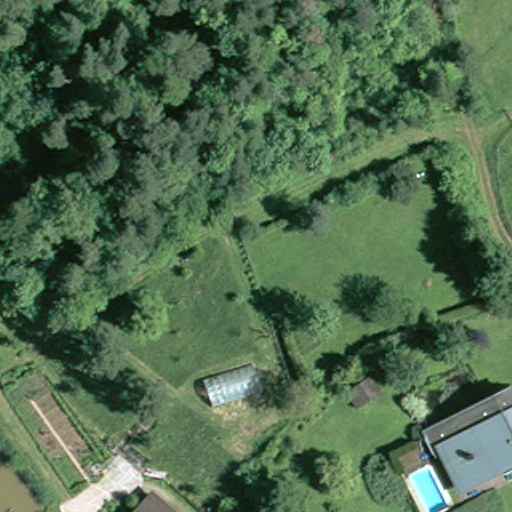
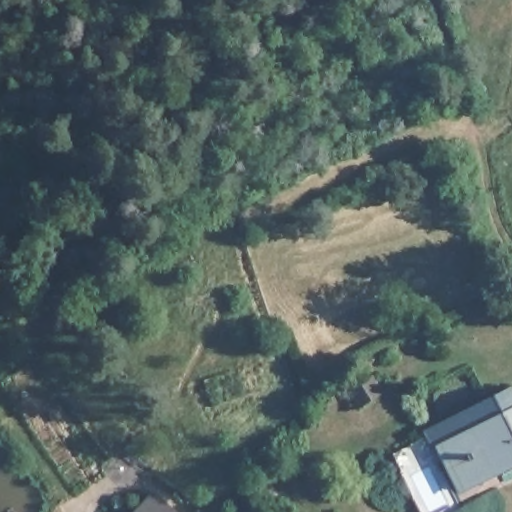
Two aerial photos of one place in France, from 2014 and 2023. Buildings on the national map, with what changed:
unchanged [(443,467),(427,433),(499,398),(508,395),(512,405),(512,461),(467,482),(454,488),(443,467)]
unchanged [(165,512),(144,512),(154,502),(165,512)]

